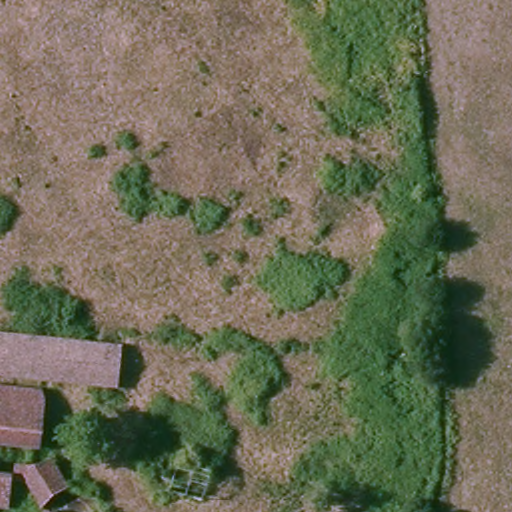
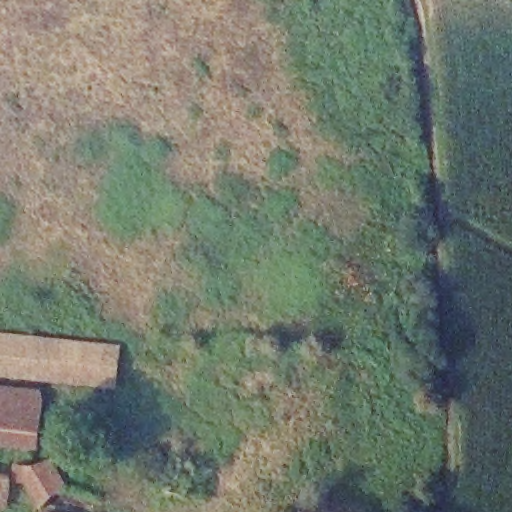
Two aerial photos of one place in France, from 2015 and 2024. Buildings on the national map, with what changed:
unchanged [(115,350),(113,379),(0,365),(0,335),(29,339),(115,350)]
unchanged [(23,419),(19,444),(0,442),(0,388),(26,392),(23,419)]
unchanged [(43,506),(29,482),(16,480),(17,462),(35,463),(55,454),(71,484),(43,506)]

